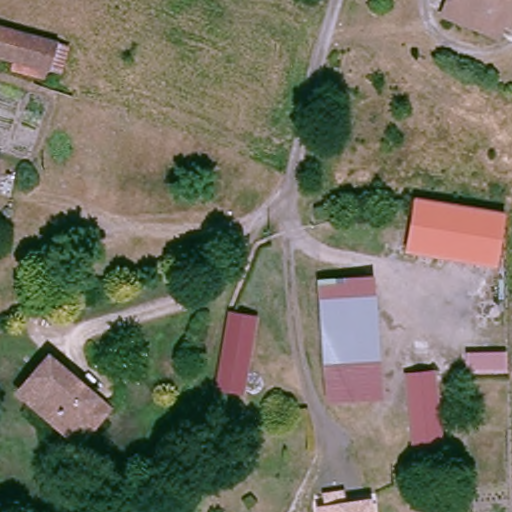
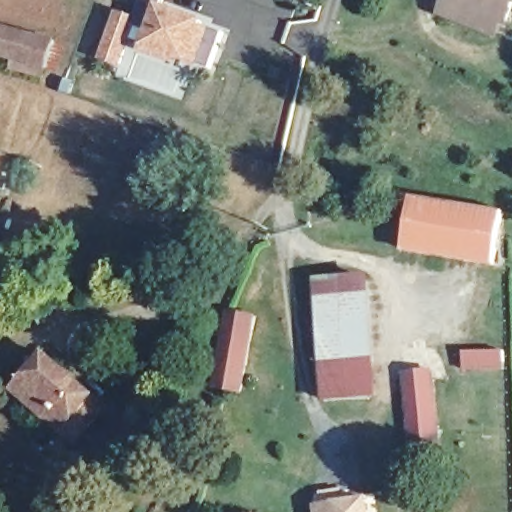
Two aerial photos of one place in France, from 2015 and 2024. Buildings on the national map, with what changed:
new [(200,65),(177,60),(176,64),(144,54),(145,49),(130,43),(123,67),(101,60),(117,12),(136,19),(142,0),(170,0),(168,8),(205,20),(203,27),(214,30),(223,33),(212,68),(200,65)]
unchanged [(486,35),(436,11),(441,0),(458,0),(495,17),(486,35)]
unchanged [(504,21),(495,17),(458,0),(512,0),(512,5),(504,21)]
unchanged [(68,45),(57,75),(46,71),(41,80),(20,74),(21,65),(0,60),(0,24),(56,40),(68,45)]
unchanged [(502,211),(493,266),(400,251),(409,196),(502,211)]
unchanged [(380,397),(321,405),(312,277),(371,274),(380,397)]
unchanged [(223,318),(246,322),(253,323),(240,386),(203,380),(217,317),(223,318)]
new [(498,348),(499,366),(459,369),(458,351),(498,348)]
unchanged [(11,400),(35,357),(89,388),(107,398),(101,410),(93,428),(85,443),(67,431),(11,400)]
unchanged [(440,450),(409,454),(401,377),(431,373),(440,450)]
unchanged [(367,498),(368,512),(317,512),(316,503),(367,498)]

